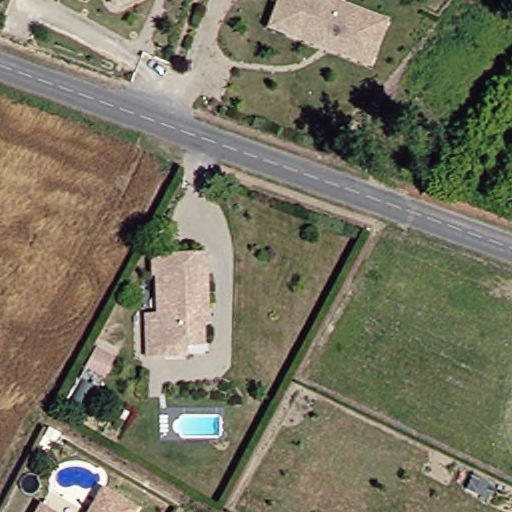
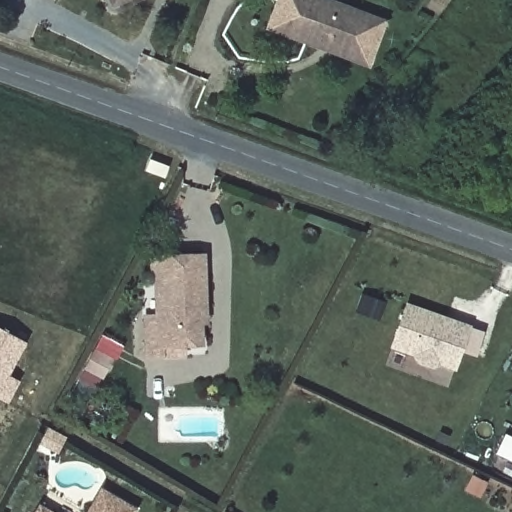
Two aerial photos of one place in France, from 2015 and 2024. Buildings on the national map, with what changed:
unchanged [(114,7),(110,0),(129,0),(114,7)]
unchanged [(384,21),(370,66),(282,39),(267,34),(274,10),(278,0),(315,0),(384,21)]
unchanged [(171,357),(151,357),(150,314),(163,313),(163,295),(170,295),(168,252),(212,250),(214,299),(215,320),(211,321),(212,342),(196,342),(195,357),(171,357)]
new [(407,301),(469,324),(454,365),(392,343),(407,301)]
new [(20,380),(8,403),(0,398),(0,328),(26,342),(9,374),(20,380)]
new [(95,345),(114,355),(102,380),(83,370),(95,345)]
unchanged [(135,506),(132,512),(91,512),(103,489),(135,506)]
unchanged [(62,512),(44,512),(48,504),(62,512)]

